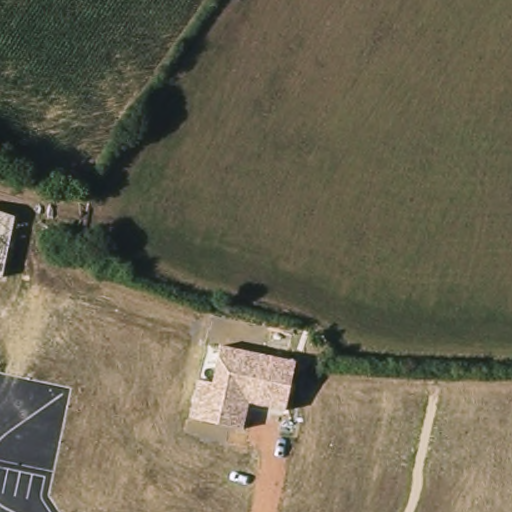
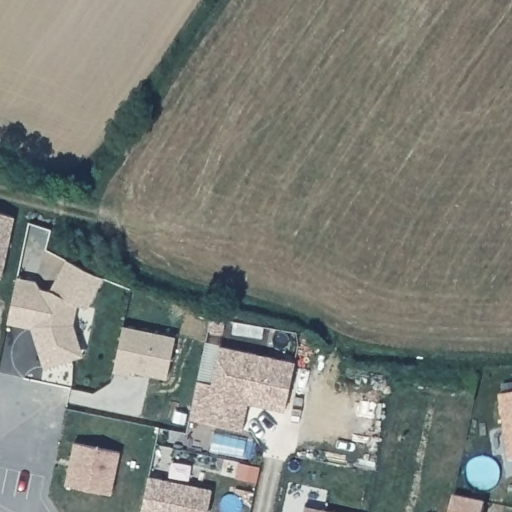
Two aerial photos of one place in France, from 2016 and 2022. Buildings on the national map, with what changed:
unchanged [(4,279),(0,278),(0,212),(14,216),(4,279)]
new [(17,277),(36,281),(39,288),(50,291),(67,260),(102,278),(87,306),(79,303),(72,323),(82,356),(44,367),(32,327),(8,323),(17,277)]
new [(130,376),(113,372),(122,325),(175,337),(167,379),(131,372),(130,376)]
unchanged [(199,379),(212,382),(222,346),(296,365),(285,412),(249,403),(242,433),(190,417),(199,379)]
new [(92,446),(137,456),(128,497),(83,488),(92,446)]
new [(166,480),(229,494),(225,512),(158,512),(166,480)]
new [(457,492),(488,499),(486,512),(453,512),(457,492)]
new [(320,511),(326,512),(319,512),(320,511)]

